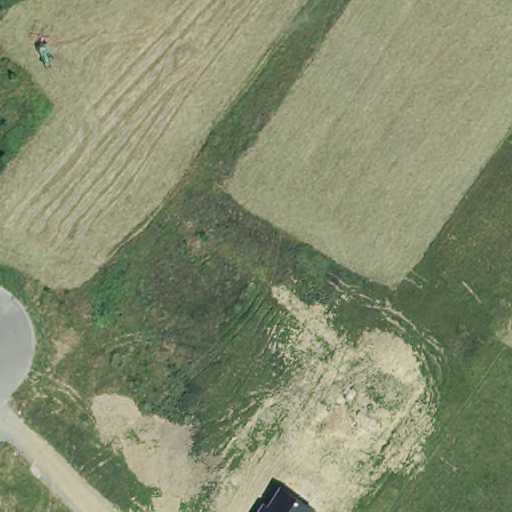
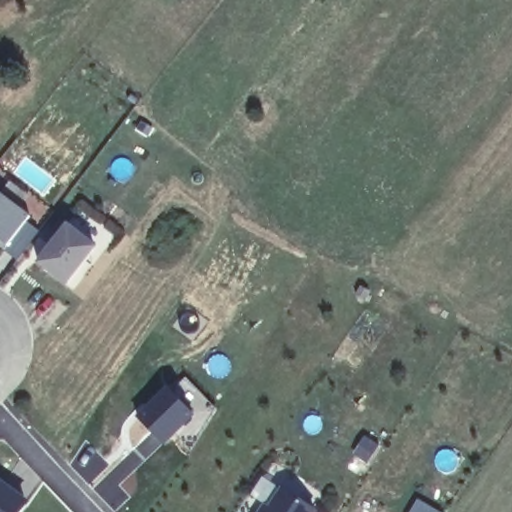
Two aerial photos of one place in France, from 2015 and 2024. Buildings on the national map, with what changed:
new [(26,222),(40,231),(17,259),(5,250),(7,245),(0,239),(0,191),(30,216),(26,222)]
new [(67,284),(38,262),(68,223),(96,246),(67,284)]
new [(165,445),(138,416),(169,387),(194,418),(165,445)]
new [(21,512),(0,512),(0,480),(28,502),(21,512)]
unchanged [(270,506),(283,487),(317,511),(316,512),(258,512),(264,503),(270,506)]

